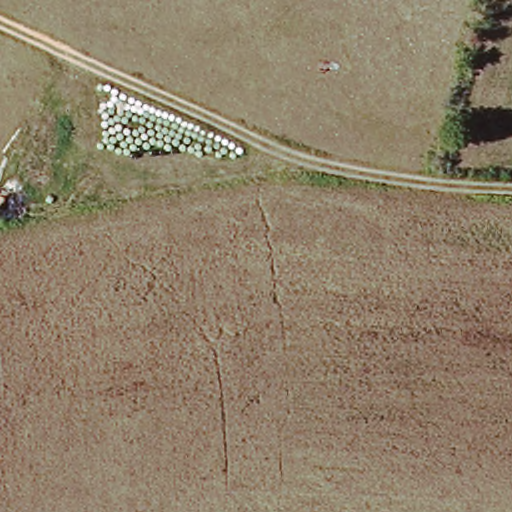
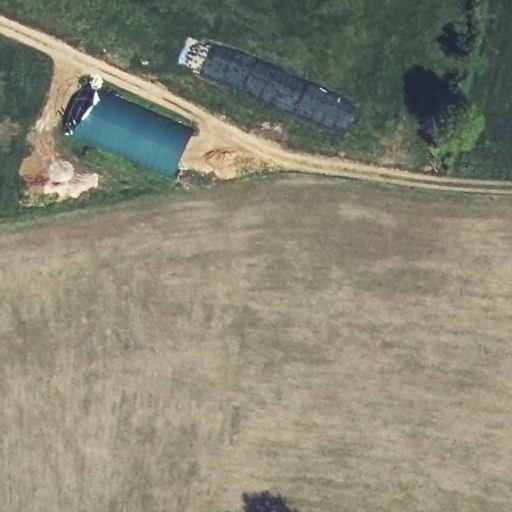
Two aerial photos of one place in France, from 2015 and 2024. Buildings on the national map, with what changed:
new [(95,88),(145,109),(142,115),(162,124),(165,118),(190,129),(171,178),(69,135),(95,88)]

